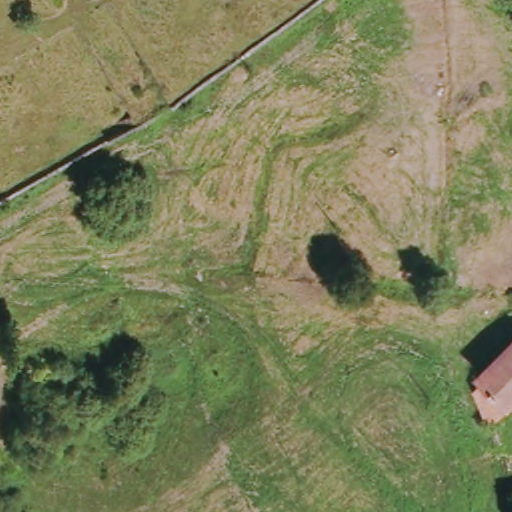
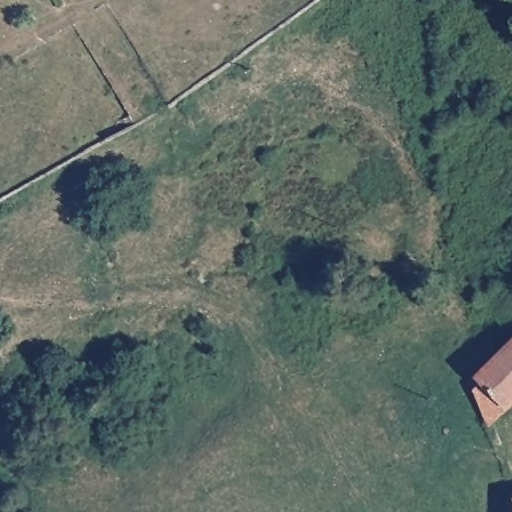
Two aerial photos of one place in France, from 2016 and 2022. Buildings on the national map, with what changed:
unchanged [(479,396),(488,387),(484,380),(512,352),(512,407),(491,427),(479,396)]

